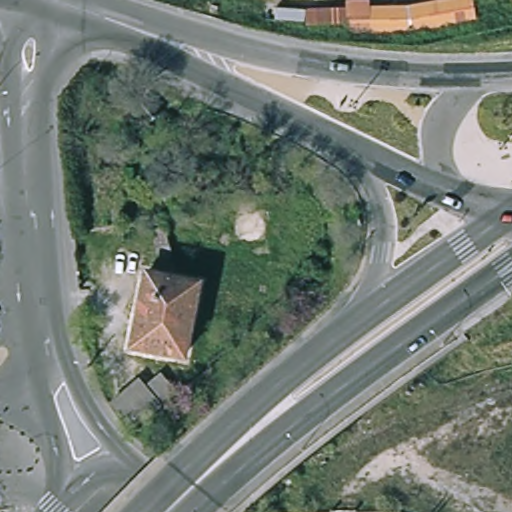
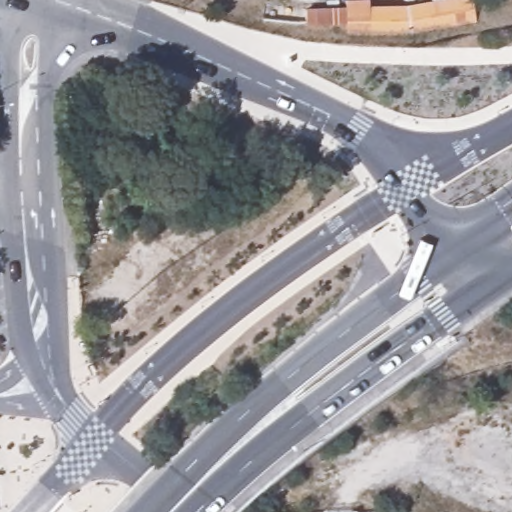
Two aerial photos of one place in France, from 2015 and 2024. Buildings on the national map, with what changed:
unchanged [(473,24),(398,34),(303,32),(303,7),(346,6),(346,0),(371,0),(371,5),(403,5),(441,0),(470,0),(473,24)]
demolished [(186,363),(129,351),(144,270),(203,281),(186,363)]
demolished [(136,377),(142,385),(156,372),(179,398),(141,432),(117,395),(136,377)]

